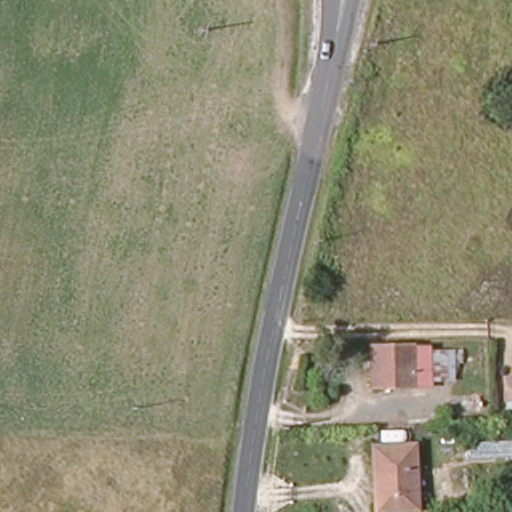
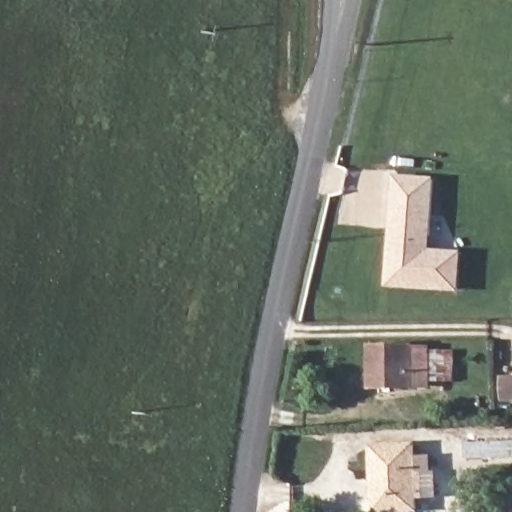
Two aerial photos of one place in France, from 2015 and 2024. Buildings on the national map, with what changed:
new [(461,293),(387,288),(395,175),(436,178),(431,249),(463,252),(461,293)]
unchanged [(373,386),(372,347),(436,346),(436,348),(460,348),(461,382),(436,382),(436,385),(373,386)]
unchanged [(512,440),(512,455),(465,457),(465,443),(512,440)]
unchanged [(370,508),(372,445),(414,444),(414,507),(370,508)]

